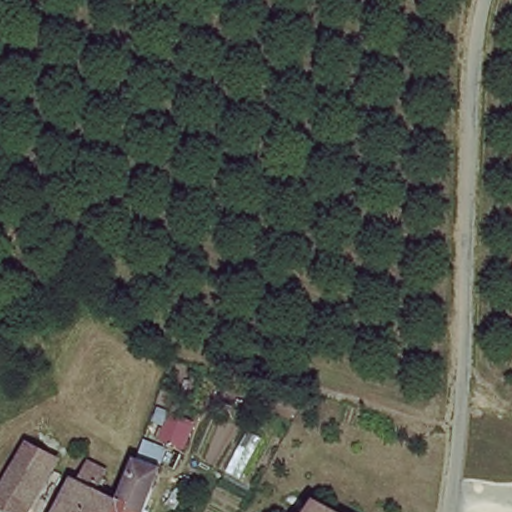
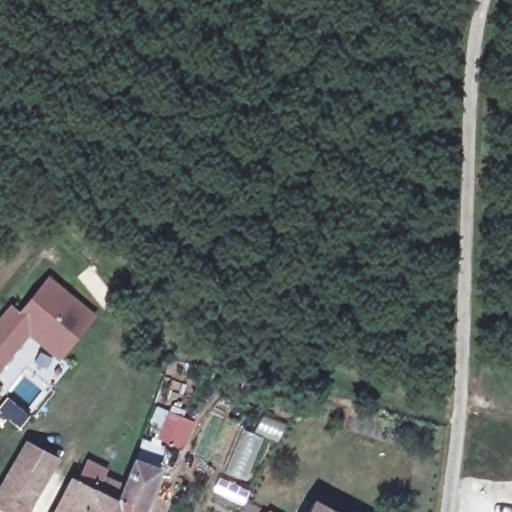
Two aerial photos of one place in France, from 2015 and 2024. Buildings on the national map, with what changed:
new [(11,305),(19,313),(49,276),(97,315),(58,361),(30,337),(0,372),(0,317),(11,305)]
new [(0,393),(0,387),(3,389),(0,393)]
unchanged [(142,436),(156,442),(170,412),(194,421),(180,454),(165,448),(155,469),(132,460),(142,436)]
demolished [(24,439),(10,464),(0,459),(0,429),(24,439)]
unchanged [(24,439),(58,457),(28,512),(12,512),(0,505),(0,482),(10,464),(24,439)]
unchanged [(91,451),(108,458),(96,491),(111,496),(104,512),(61,512),(63,507),(91,451)]
unchanged [(132,460),(155,469),(139,512),(104,512),(111,496),(126,458),(132,460)]
unchanged [(336,512),(308,512),(316,498),(336,512)]

